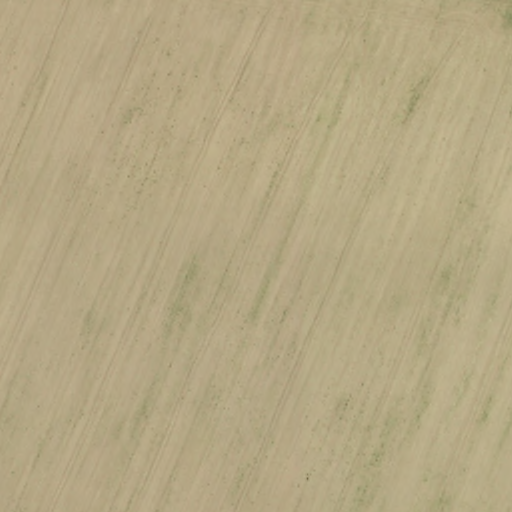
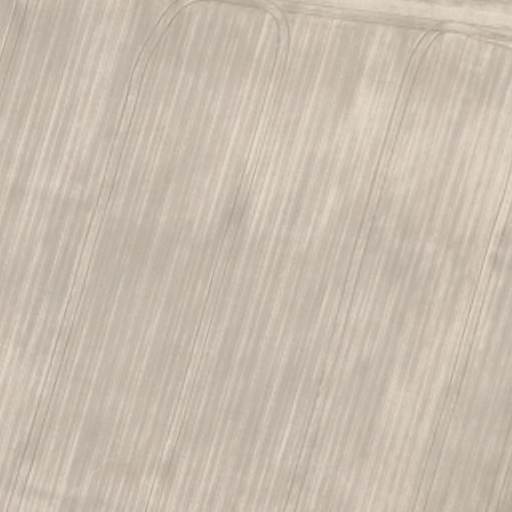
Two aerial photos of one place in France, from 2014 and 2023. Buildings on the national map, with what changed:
[]

